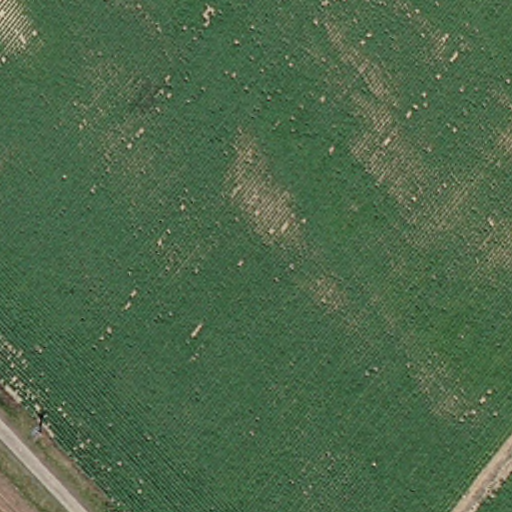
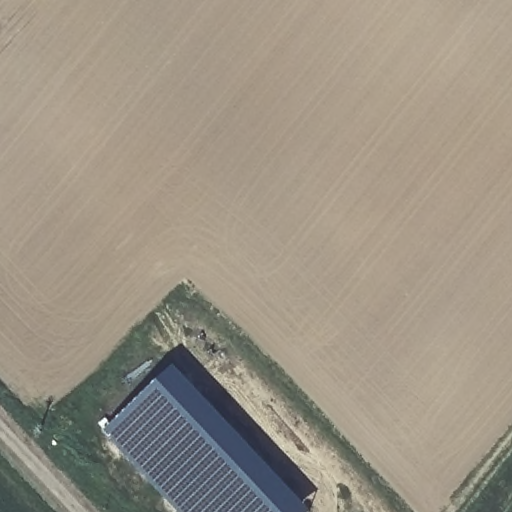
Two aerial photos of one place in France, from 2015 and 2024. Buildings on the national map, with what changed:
new [(174,367),(310,512),(177,512),(103,432),(174,367)]

